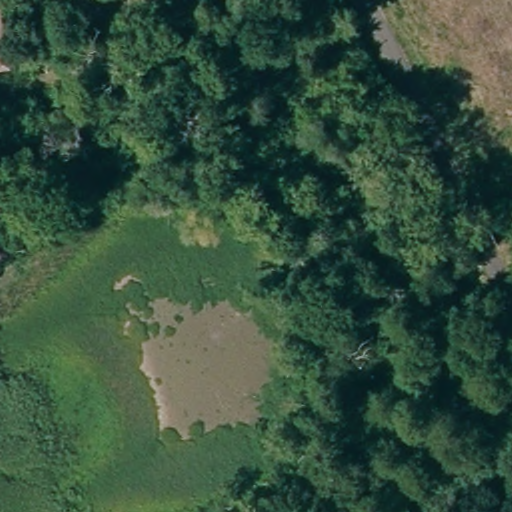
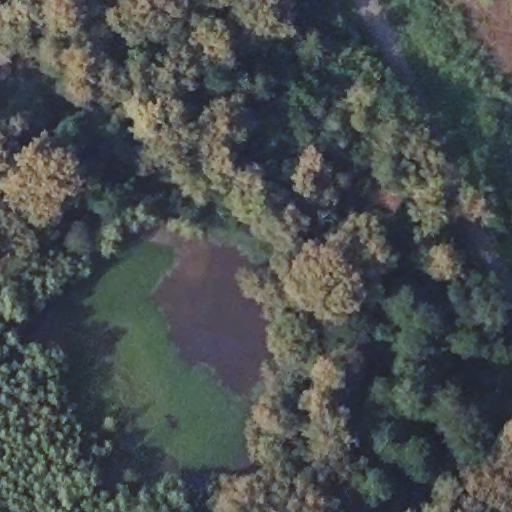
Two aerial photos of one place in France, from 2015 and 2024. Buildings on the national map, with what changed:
unchanged [(11,61),(0,63),(0,8),(3,8),(11,61)]

